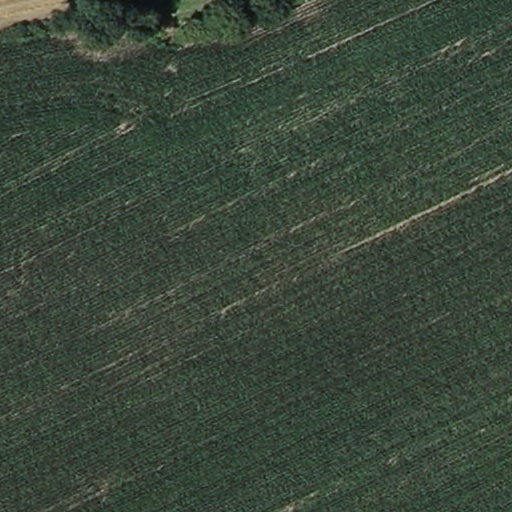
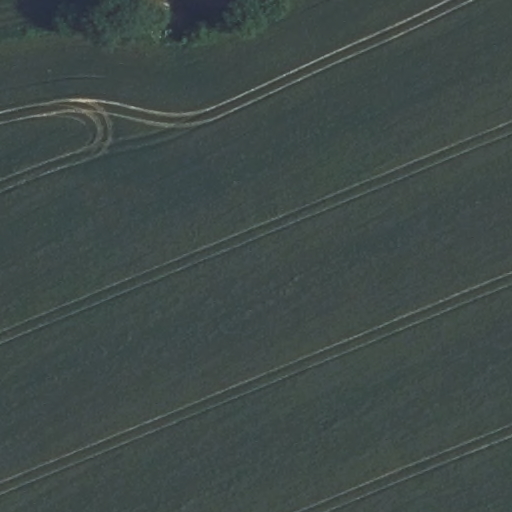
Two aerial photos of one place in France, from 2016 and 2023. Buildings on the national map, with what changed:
[]

